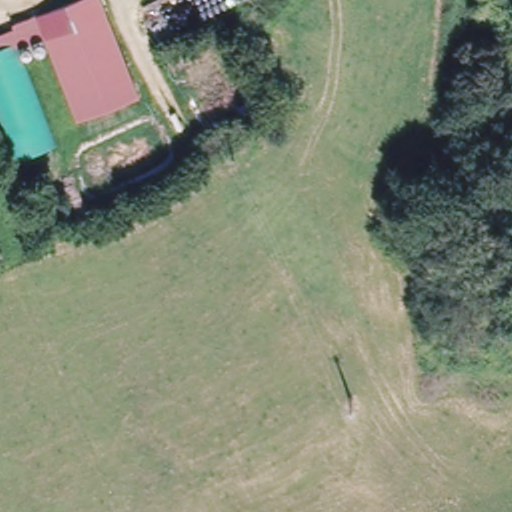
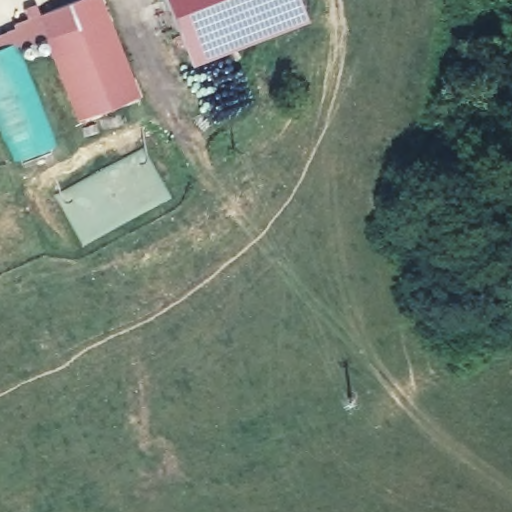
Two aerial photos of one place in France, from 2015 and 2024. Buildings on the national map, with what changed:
unchanged [(61,0),(102,0),(141,90),(85,112),(53,38),(42,8),(61,0)]
new [(305,18),(192,66),(164,0),(297,0),(305,18)]
unchanged [(53,38),(14,53),(2,23),(42,8),(53,38)]
unchanged [(48,135),(7,151),(0,133),(0,24),(2,23),(14,53),(48,135)]

